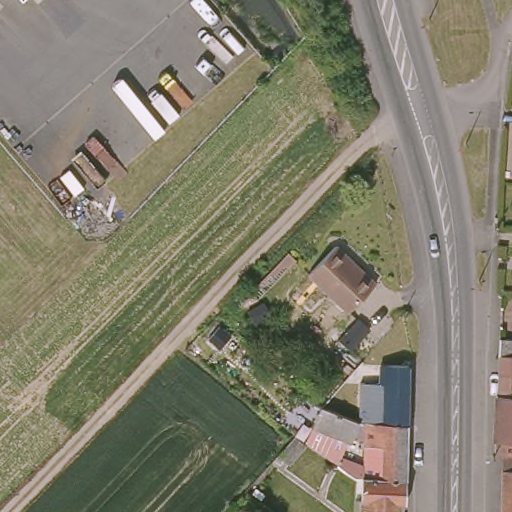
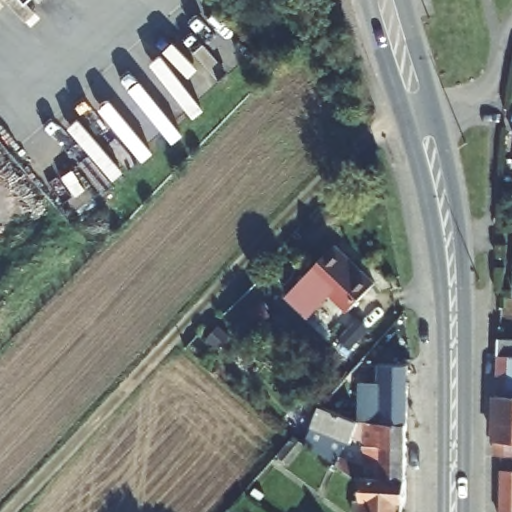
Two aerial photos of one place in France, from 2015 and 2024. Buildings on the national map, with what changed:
unchanged [(376,282),(349,311),(309,272),(336,244),(376,282)]
unchanged [(260,302),(268,316),(255,323),(247,311),(260,302)]
unchanged [(351,348),(340,337),(358,319),(369,329),(351,348)]
unchanged [(491,412),(492,395),(494,395),(495,370),(496,355),(494,355),(495,337),(512,339),(512,455),(497,455),(492,454),(492,440),(490,440),(491,412)]
unchanged [(363,358),(370,364),(353,386),(359,388),(371,388),(371,395),(384,395),(384,382),(381,382),(382,361),(409,361),(408,421),(359,419),(321,403),(363,358)]
unchanged [(356,475),(338,463),(344,456),(354,462),(364,464),(365,460),(371,460),(370,442),(364,442),(364,438),(354,434),(352,440),(313,424),(321,403),(359,419),(408,421),(407,429),(407,475),(407,476),(362,475),(356,475)]
unchanged [(306,446),(289,465),(277,455),(294,436),(306,446)]
unchanged [(512,455),(512,512),(496,512),(497,455),(512,455)]
unchanged [(404,500),(403,510),(399,510),(398,512),(355,512),(355,498),(361,498),(362,475),(407,476),(406,500),(404,500)]

